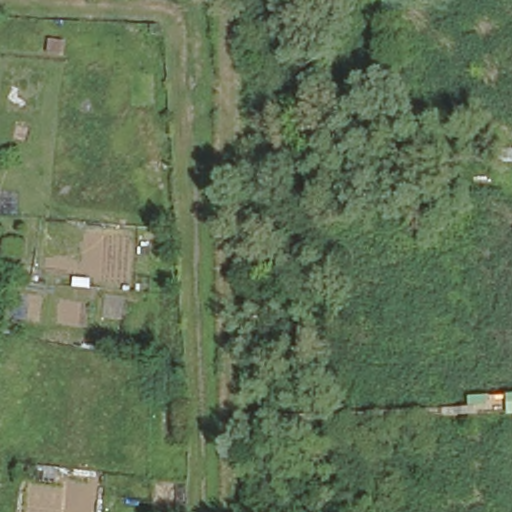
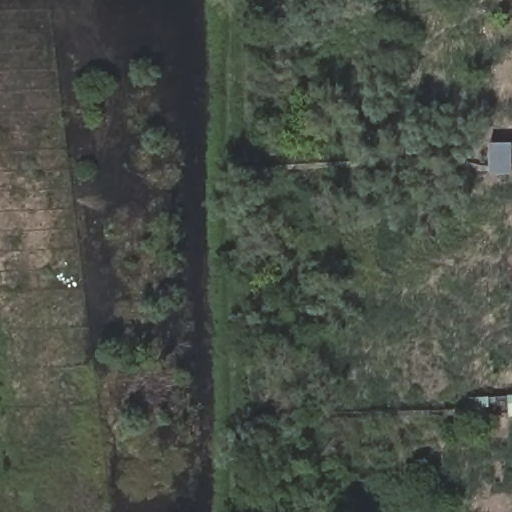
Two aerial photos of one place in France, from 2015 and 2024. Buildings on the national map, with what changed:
unchanged [(508,386),(512,387),(512,410),(509,409),(508,386)]

